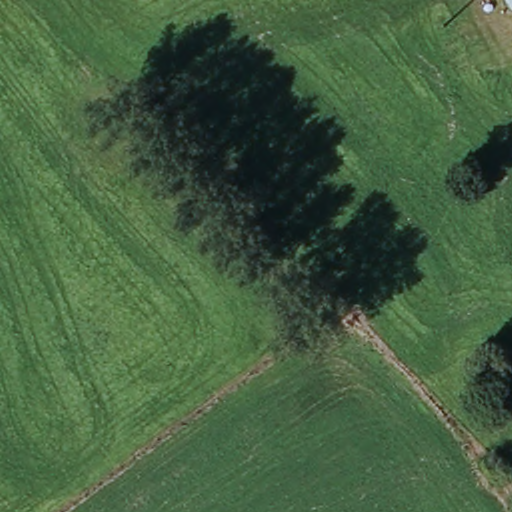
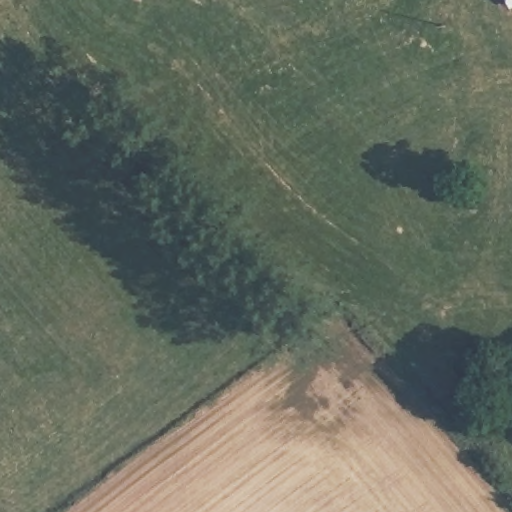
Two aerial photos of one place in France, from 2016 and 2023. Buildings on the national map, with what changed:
unchanged [(507,0),(512,0),(512,5),(509,6),(507,0)]

